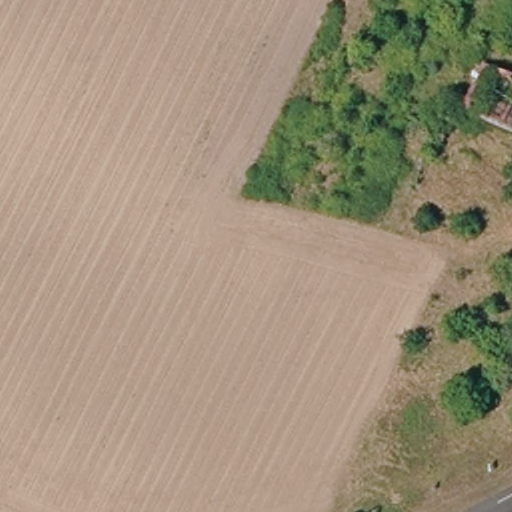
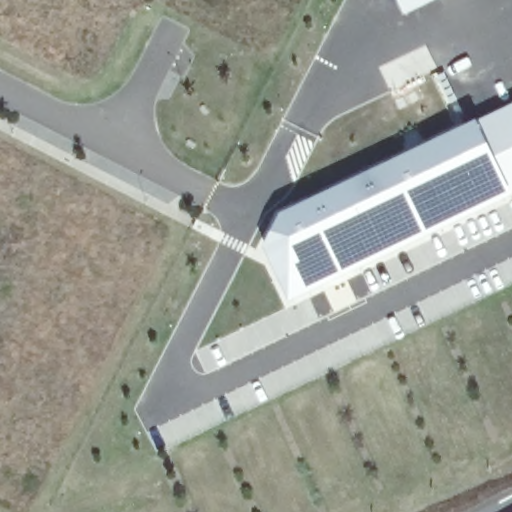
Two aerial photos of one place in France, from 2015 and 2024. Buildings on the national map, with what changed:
new [(396,0),(436,0),(404,16),(396,0)]
demolished [(479,67),(510,81),(512,78),(512,136),(458,111),(479,67)]
new [(278,211),(438,135),(477,118),(512,101),(512,194),(464,216),(287,306),(260,245),(265,231),(278,211)]

